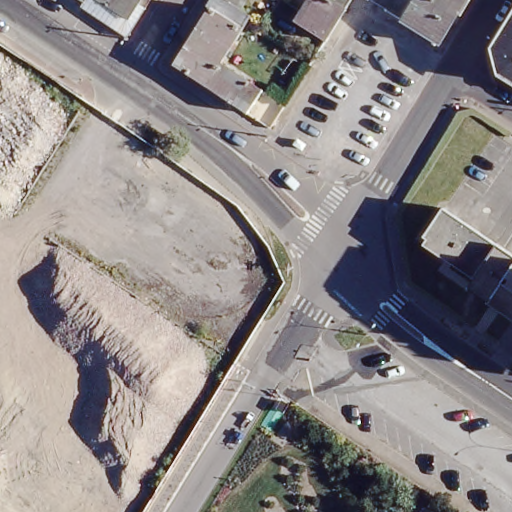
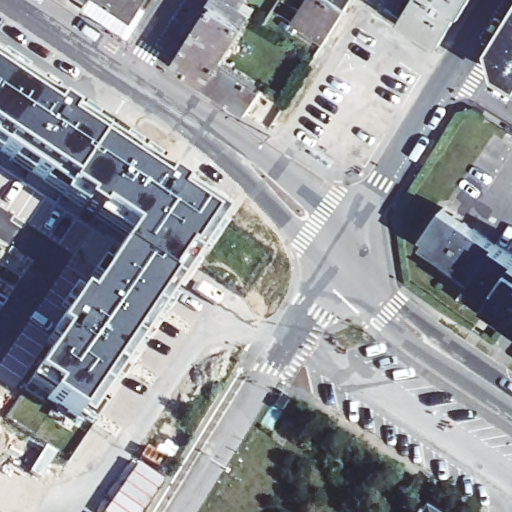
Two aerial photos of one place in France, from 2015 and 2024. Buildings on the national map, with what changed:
unchanged [(141,16),(122,45),(77,14),(80,11),(67,1),(67,0),(141,0),(134,11),(141,16)]
unchanged [(252,14),(222,61),(264,89),(249,111),(224,95),(177,63),(212,6),(207,4),(210,0),(230,0),(241,7),(252,14)]
unchanged [(230,0),(245,0),(241,7),(230,0)]
unchanged [(276,7),(280,0),(282,0),(302,13),(310,0),(351,0),(327,39),(276,7)]
unchanged [(404,21),(417,0),(469,0),(442,44),(404,21)]
unchanged [(512,25),(512,84),(501,78),(495,54),(512,25)]
new [(179,188),(221,218),(85,423),(79,413),(76,417),(48,398),(54,389),(33,376),(61,334),(54,329),(77,294),(85,299),(124,238),(59,197),(62,192),(0,150),(0,69),(164,179),(179,188)]
unchanged [(480,282),(487,273),(434,239),(454,209),(512,246),(512,301),(480,282)]
new [(145,479),(157,487),(140,512),(108,512),(140,467),(150,473),(145,479)]

